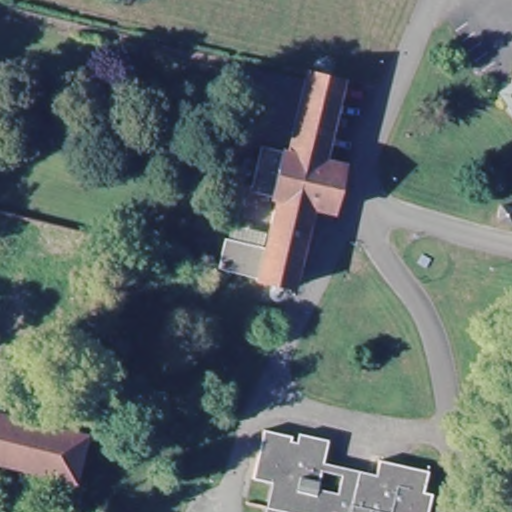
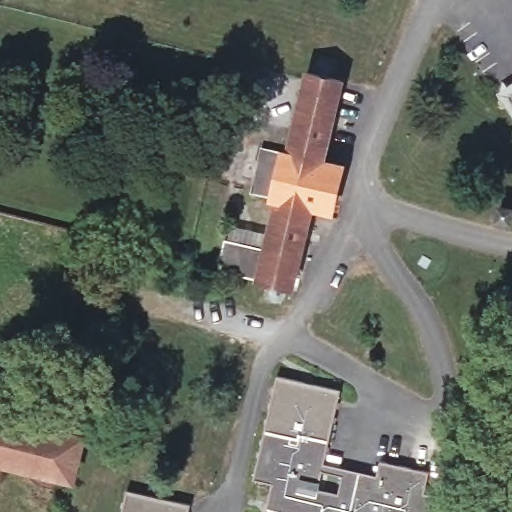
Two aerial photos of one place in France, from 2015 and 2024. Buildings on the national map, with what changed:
unchanged [(328,157),(348,163),(338,209),(322,205),(321,210),(316,209),(297,286),(223,267),(230,241),(271,251),(283,200),(279,199),(279,195),(258,190),(269,144),(290,149),(292,146),(296,147),(315,71),(347,77),(328,157)]
unchanged [(512,90),(512,91),(511,90),(512,90)]
unchanged [(508,221),(496,220),(498,205),(510,207),(508,221)]
new [(335,391),(327,433),(296,426),(293,440),(287,438),(289,430),(267,425),(279,377),(335,391)]
unchanged [(76,432),(66,475),(0,458),(0,413),(76,432)]
unchanged [(281,482),(251,475),(262,424),(289,430),(287,438),(293,440),(296,426),(327,433),(317,486),(335,490),(341,467),(367,473),(366,485),(371,486),(377,456),(427,466),(423,487),(432,490),(428,512),(274,512),(281,482)]
new [(190,505),(188,512),(123,512),(128,490),(190,505)]

